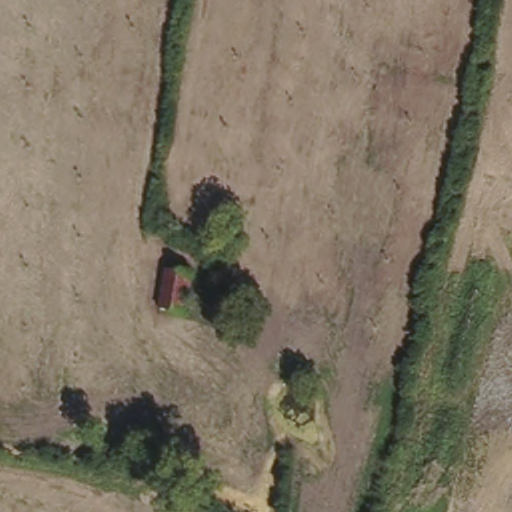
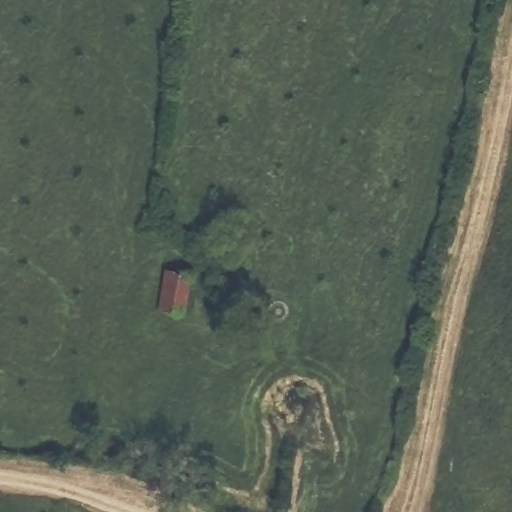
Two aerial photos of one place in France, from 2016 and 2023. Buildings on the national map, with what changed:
unchanged [(184,314),(160,310),(166,273),(190,275),(184,314)]

